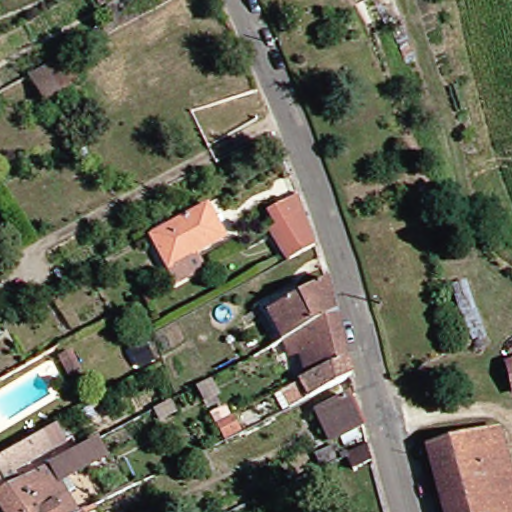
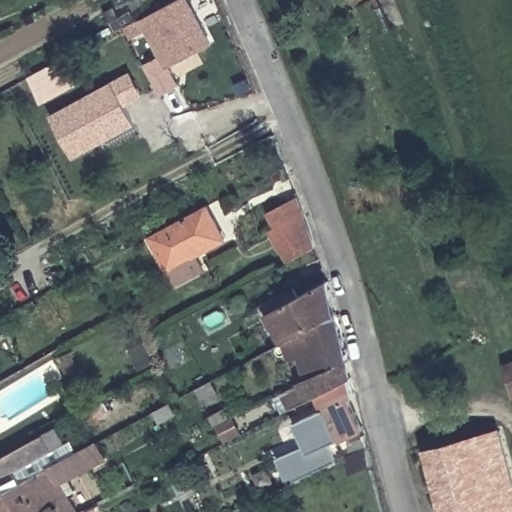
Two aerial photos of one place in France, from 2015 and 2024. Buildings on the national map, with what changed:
new [(213,44),(172,66),(175,73),(173,75),(179,87),(162,96),(145,65),(160,57),(149,32),(134,40),(126,27),(176,0),(189,0),(213,44)]
unchanged [(65,59),(79,85),(45,105),(30,78),(65,59)]
new [(145,94),(126,105),(137,124),(76,158),(53,114),(133,71),(145,94)]
unchanged [(276,226),(268,210),(294,195),(303,210),(314,246),(289,260),(278,225),(276,226)]
unchanged [(168,269),(150,236),(207,206),(224,238),(168,269)]
unchanged [(315,286),(319,284),(327,317),(285,340),(278,307),(275,296),(297,283),(300,295),(315,286)]
unchanged [(285,340),(327,317),(338,363),(342,381),(294,405),(287,388),(295,384),(285,340)]
new [(506,363),(512,361),(512,386),(506,363)]
unchanged [(318,410),(325,407),(350,395),(364,426),(340,438),(333,441),(318,410)]
new [(229,406),(243,432),(225,441),(212,415),(229,406)]
new [(327,428),(333,441),(334,441),(343,458),(291,483),(279,457),(308,446),(297,423),(319,412),(327,428)]
unchanged [(436,512),(419,446),(491,427),(512,509),(512,512),(436,512)]
unchanged [(45,438),(53,452),(21,469),(14,456),(45,438)]
unchanged [(0,509),(0,497),(99,442),(108,460),(63,484),(77,512),(4,512),(1,508),(0,509)]
unchanged [(373,460),(354,469),(349,457),(369,447),(373,460)]
unchanged [(146,512),(134,512),(144,507),(146,512)]

